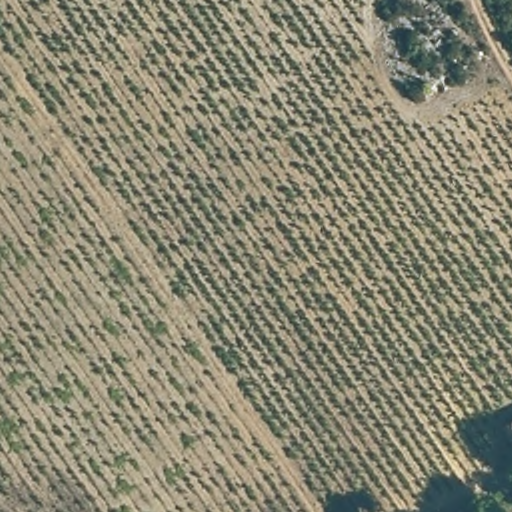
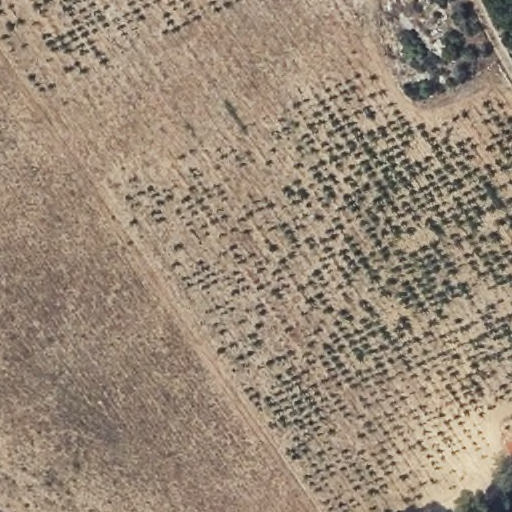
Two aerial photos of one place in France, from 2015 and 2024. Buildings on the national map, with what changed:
unchanged [(496,424),(512,417),(512,451),(509,453),(496,424)]

